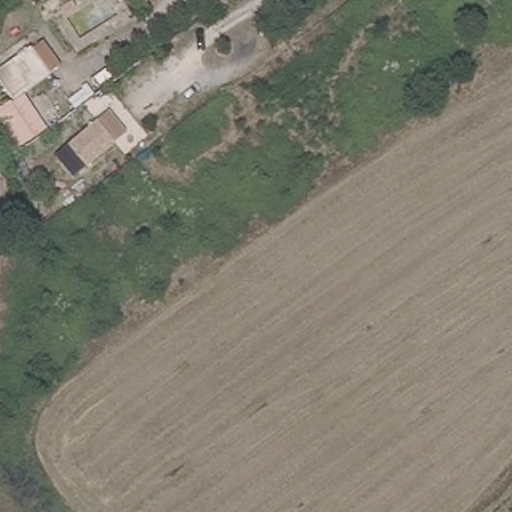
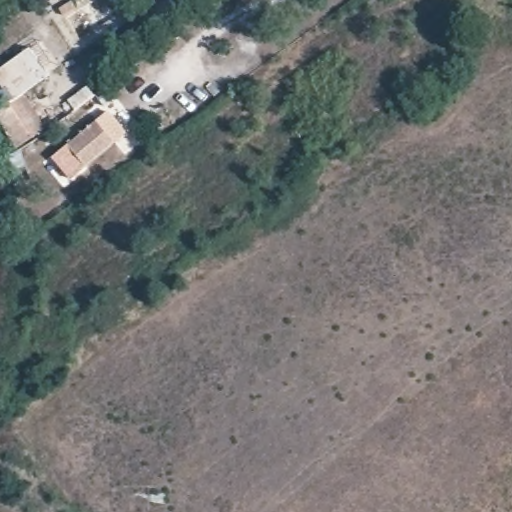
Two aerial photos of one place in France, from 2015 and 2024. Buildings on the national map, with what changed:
unchanged [(0,131),(0,103),(10,98),(0,84),(0,60),(27,43),(48,75),(24,90),(47,126),(35,136),(13,151),(0,131)]
unchanged [(108,105),(128,128),(114,139),(79,169),(62,142),(95,115),(108,105)]

